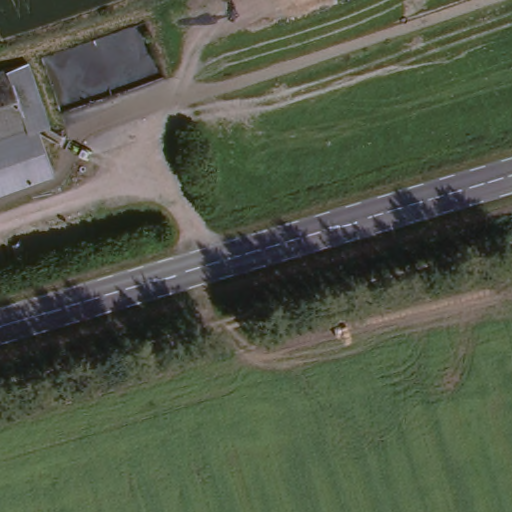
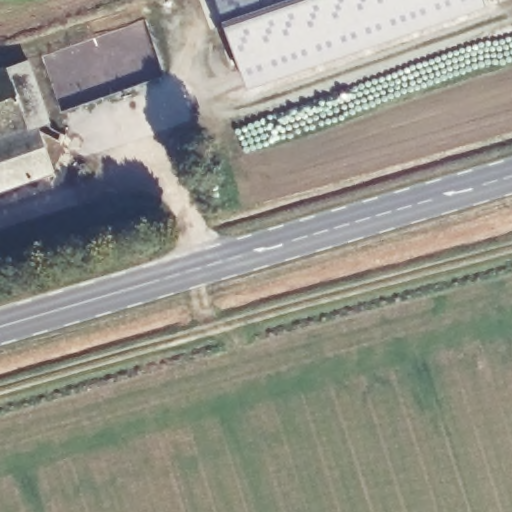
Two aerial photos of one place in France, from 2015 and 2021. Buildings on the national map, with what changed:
new [(217,0),(484,0),(486,7),(248,89),(217,0)]
unchanged [(11,66),(32,59),(53,121),(40,127),(55,171),(0,191),(0,133),(33,122),(11,66)]
unchanged [(0,133),(0,70),(11,66),(33,122),(0,133)]

